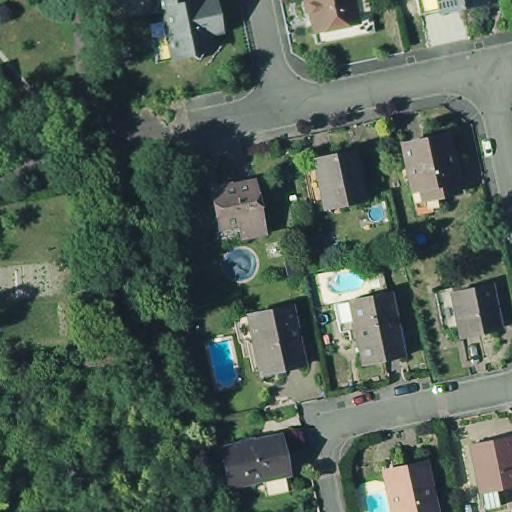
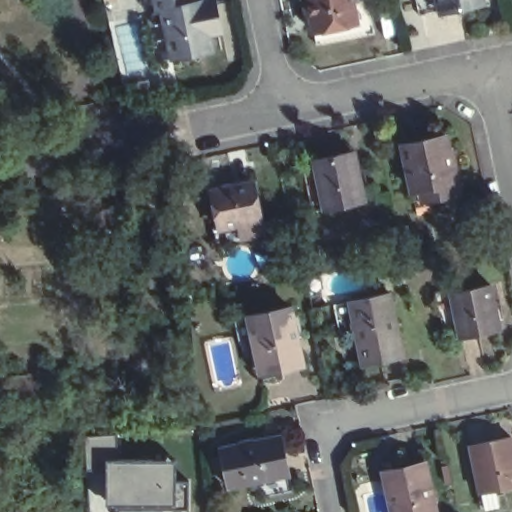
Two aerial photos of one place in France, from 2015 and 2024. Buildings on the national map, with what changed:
unchanged [(170,5),(165,6),(164,0),(222,0),(227,29),(215,31),(217,40),(203,56),(197,47),(187,50),(180,51),(175,32),(170,5)]
unchanged [(317,21),(313,0),(358,0),(360,12),(317,21)]
unchanged [(358,0),(372,0),(376,22),(320,33),(317,21),(360,12),(358,0)]
unchanged [(474,0),(475,4),(434,12),(431,0),(474,0)]
unchanged [(418,202),(415,185),(405,140),(425,136),(425,134),(448,130),(452,144),(454,144),(458,167),(457,168),(460,186),(438,191),(440,198),(418,202)]
unchanged [(310,174),(323,171),(322,164),(361,156),(371,205),(332,212),(331,207),(318,210),(310,174)]
unchanged [(225,240),(222,229),(228,227),(220,191),(261,182),(269,219),(271,230),(225,240)]
unchanged [(506,335),(466,343),(464,332),(448,336),(440,297),(455,293),(456,298),(496,290),(506,335)]
unchanged [(342,338),(336,310),(352,306),(392,298),(405,362),(365,370),(358,335),(342,338)]
unchanged [(309,365),(268,374),(261,344),(246,347),(242,325),(256,321),(297,312),(309,365)]
new [(118,510),(114,509),(113,471),(85,470),(82,435),(115,433),(116,459),(151,460),(151,480),(187,480),(187,510),(162,510),(162,512),(118,512),(118,510)]
unchanged [(275,496),(271,480),(238,487),(229,449),(282,437),(286,455),(288,455),(292,476),(296,492),(275,496)]
unchanged [(512,438),(512,487),(483,493),(474,446),(512,438)]
unchanged [(382,473),(423,464),(434,512),(391,512),(382,473)]

